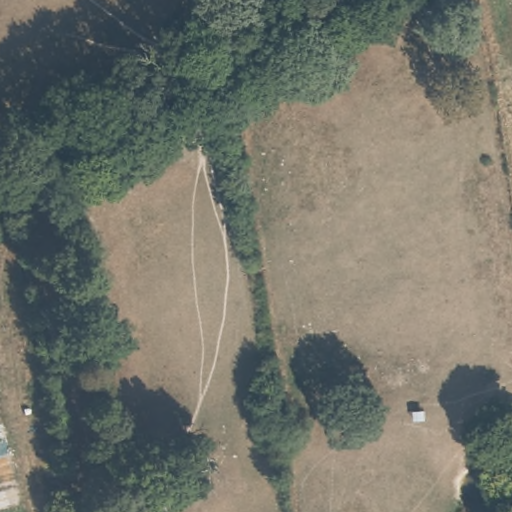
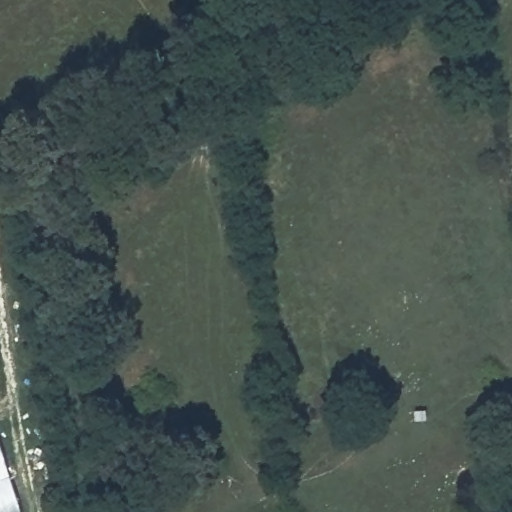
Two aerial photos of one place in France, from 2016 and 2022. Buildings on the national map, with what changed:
new [(19,512),(0,512),(0,451),(19,512)]

